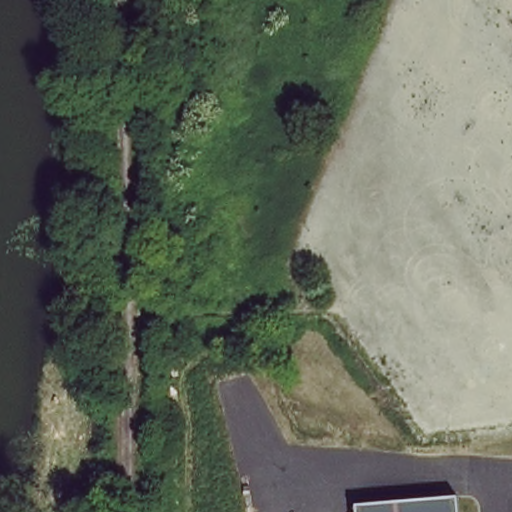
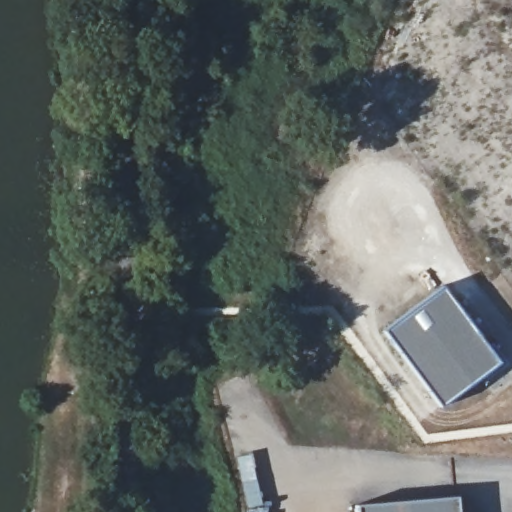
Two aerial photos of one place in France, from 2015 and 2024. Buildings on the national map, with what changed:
new [(493,348),(499,344),(512,362),(512,365),(450,411),(393,338),(451,292),(493,348)]
unchanged [(456,497),(457,512),(356,512),(356,505),(456,497)]

